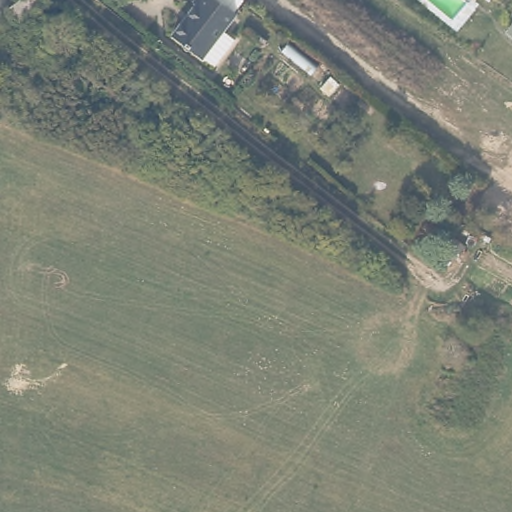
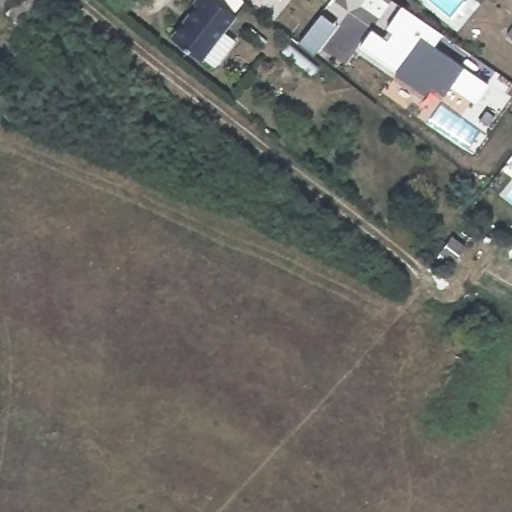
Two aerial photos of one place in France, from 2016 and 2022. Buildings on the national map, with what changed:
unchanged [(45,0),(16,22),(6,10),(18,0),(45,0)]
unchanged [(203,62),(202,64),(172,41),(197,10),(194,7),(200,0),(211,0),(236,20),(224,35),(236,45),(215,71),(203,62)]
new [(432,44),(462,65),(488,81),(474,101),(449,87),(442,95),(428,85),(422,95),(396,74),(359,45),(372,27),(387,38),(392,30),(386,26),(402,2),(442,32),(432,44)]
unchanged [(512,26),(512,39),(506,34),(512,26)]

